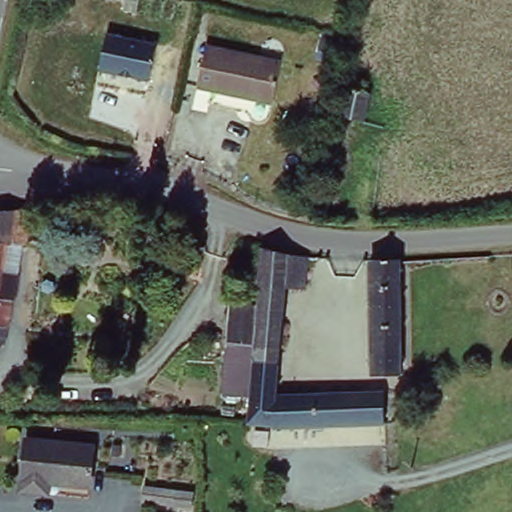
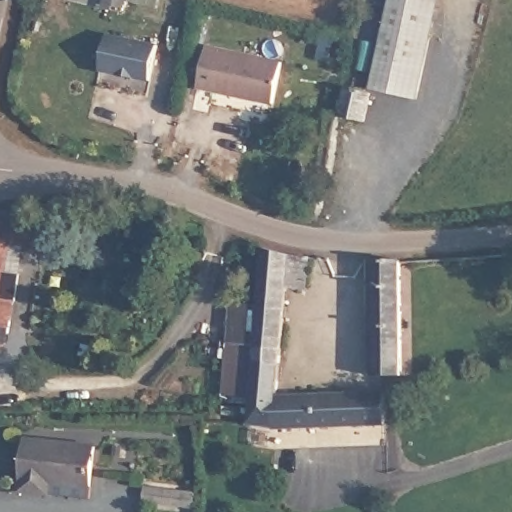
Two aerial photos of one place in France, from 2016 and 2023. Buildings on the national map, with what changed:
new [(417,106),(369,96),(389,0),(440,0),(417,106)]
unchanged [(109,31),(160,40),(150,80),(99,70),(109,31)]
unchanged [(202,45),(284,61),(275,105),(194,91),(202,45)]
demolished [(347,83),(355,83),(356,73),(369,75),(367,87),(375,89),(369,116),(342,113),(347,83)]
unchanged [(30,267),(18,266),(14,292),(22,293),(19,314),(0,312),(0,226),(34,223),(30,267)]
unchanged [(406,256),(407,353),(407,381),(381,382),(377,261),(406,256)]
unchanged [(261,343),(263,261),(283,261),(296,261),(307,259),(306,300),(286,300),(286,374),(285,395),(281,432),(257,431),(258,384),(261,343)]
unchanged [(16,344),(0,343),(0,312),(19,314),(16,344)]
unchanged [(285,395),(386,390),(387,424),(281,432),(285,395)]
unchanged [(98,444),(97,483),(43,483),(43,496),(28,496),(29,444),(98,444)]

